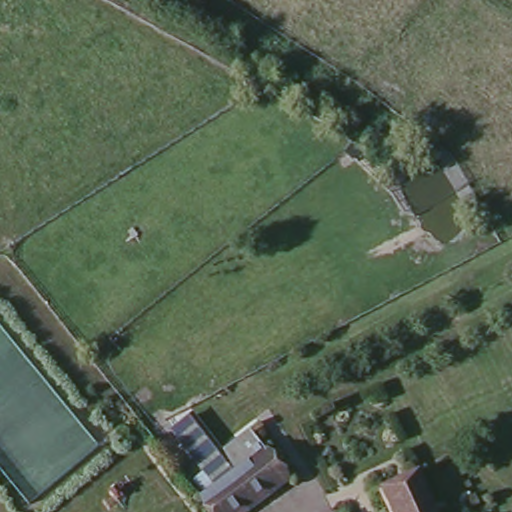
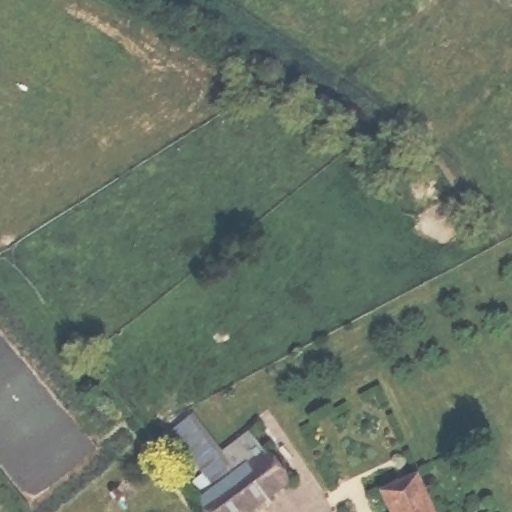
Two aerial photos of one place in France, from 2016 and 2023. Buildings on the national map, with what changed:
unchanged [(263,487),(233,512),(214,512),(202,497),(216,484),(174,429),(189,417),(220,451),(253,427),(292,476),(271,493),(263,487)]
unchanged [(386,512),(375,488),(408,471),(430,512),(386,512)]

